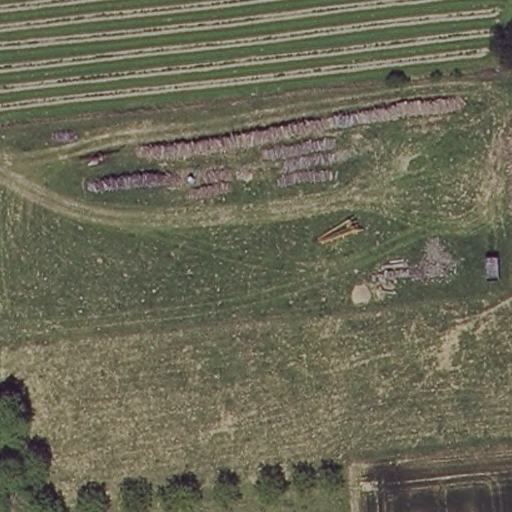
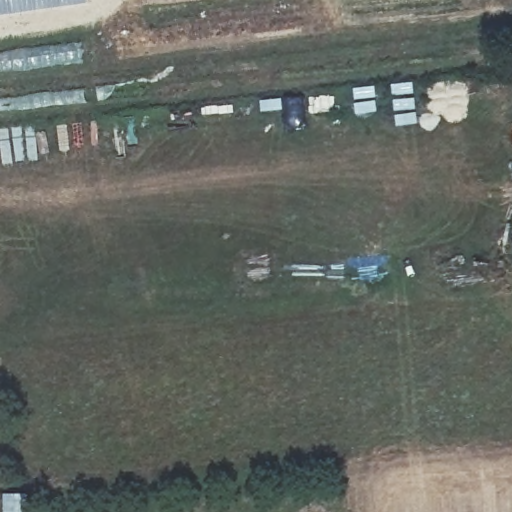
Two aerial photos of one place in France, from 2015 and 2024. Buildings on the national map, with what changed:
new [(37,12),(0,16),(0,0),(88,0),(89,4),(37,12)]

